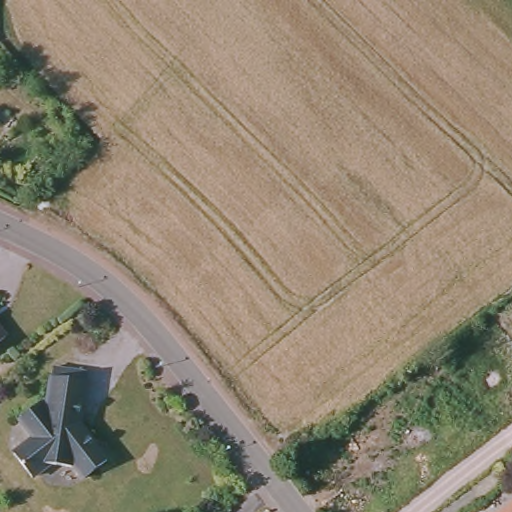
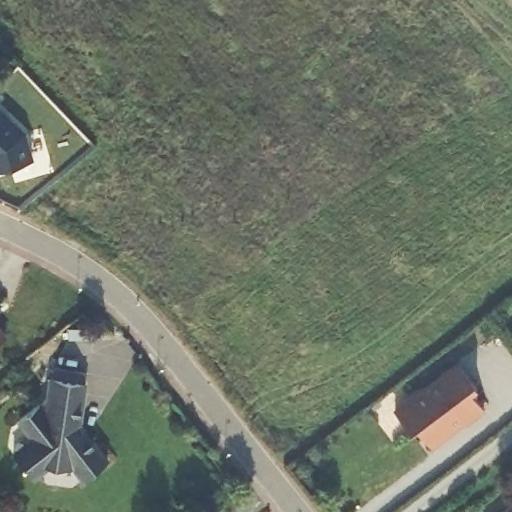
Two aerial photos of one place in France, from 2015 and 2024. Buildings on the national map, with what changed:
new [(0,167),(0,107),(25,131),(32,158),(0,167)]
unchanged [(83,371),(76,423),(105,460),(81,478),(73,467),(46,464),(29,477),(11,453),(31,437),(16,417),(46,394),(50,367),(83,371)]
new [(463,368),(481,392),(475,396),(489,414),(471,427),(468,423),(456,432),(457,434),(435,451),(421,432),(415,436),(400,417),(463,368)]
unchanged [(512,501),(512,512),(497,512),(512,501)]

